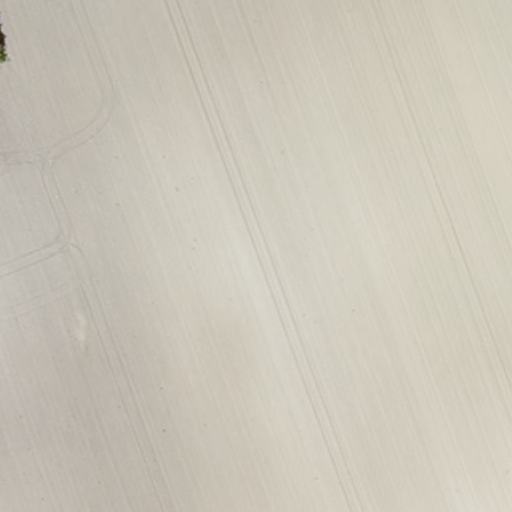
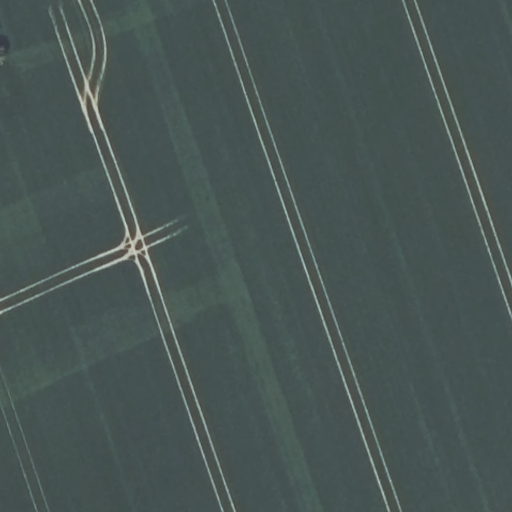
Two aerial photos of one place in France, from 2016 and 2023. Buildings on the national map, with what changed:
[]

